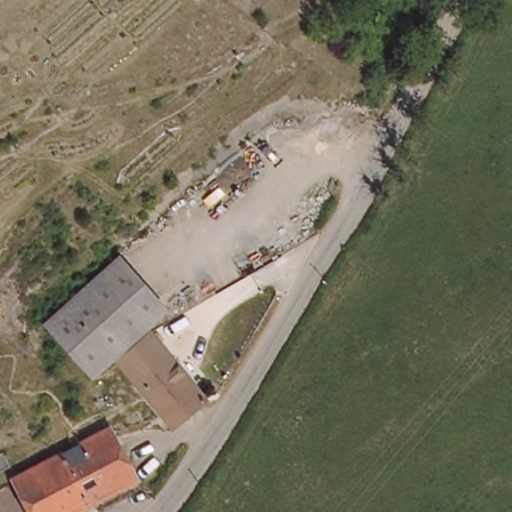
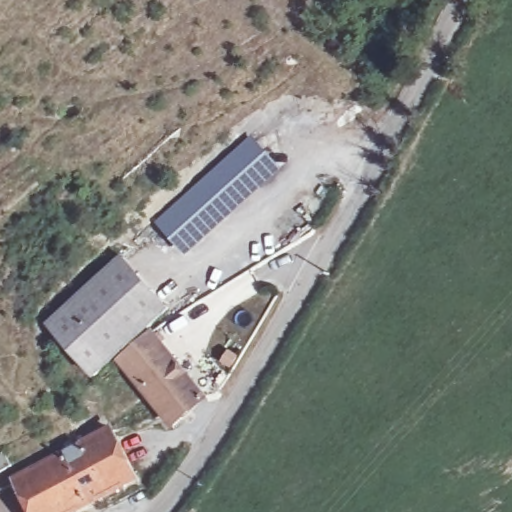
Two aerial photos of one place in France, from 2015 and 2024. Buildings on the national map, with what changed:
new [(155,223),(251,135),(282,169),(185,257),(155,223)]
unchanged [(94,377),(47,325),(122,257),(169,308),(94,377)]
unchanged [(205,397),(173,427),(120,361),(152,332),(205,397)]
unchanged [(112,381),(106,373),(113,368),(119,375),(112,381)]
unchanged [(112,428),(137,477),(90,502),(75,474),(64,454),(112,428)]
unchanged [(12,466),(0,472),(0,452),(3,450),(12,466)]
unchanged [(75,474),(90,502),(72,512),(34,512),(17,480),(64,454),(75,474)]

